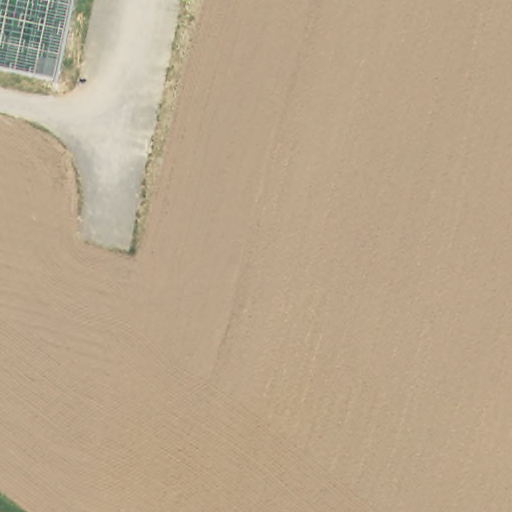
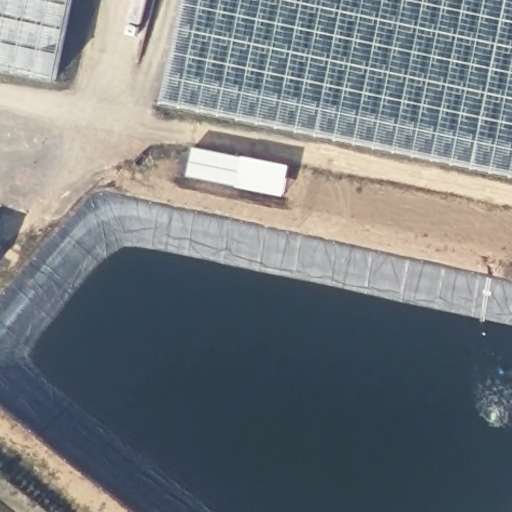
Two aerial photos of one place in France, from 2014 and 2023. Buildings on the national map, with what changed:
unchanged [(0,0),(75,0),(59,82),(0,70),(0,0)]
new [(512,0),(512,174),(162,101),(183,0),(512,0)]

